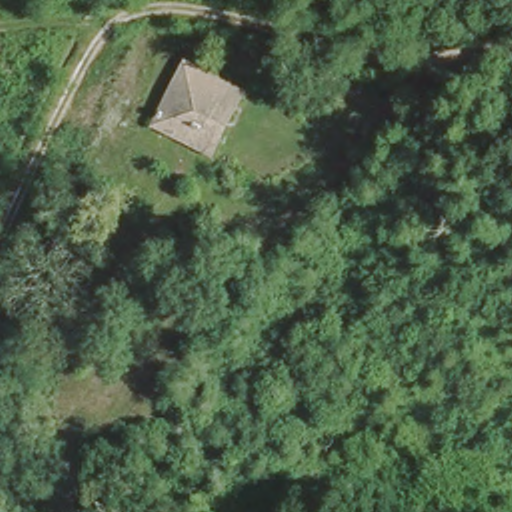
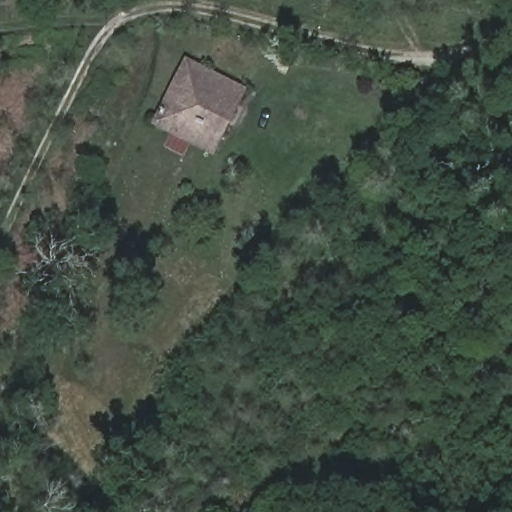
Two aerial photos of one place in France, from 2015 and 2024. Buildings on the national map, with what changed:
unchanged [(244,99),(209,154),(151,117),(187,62),(244,99)]

